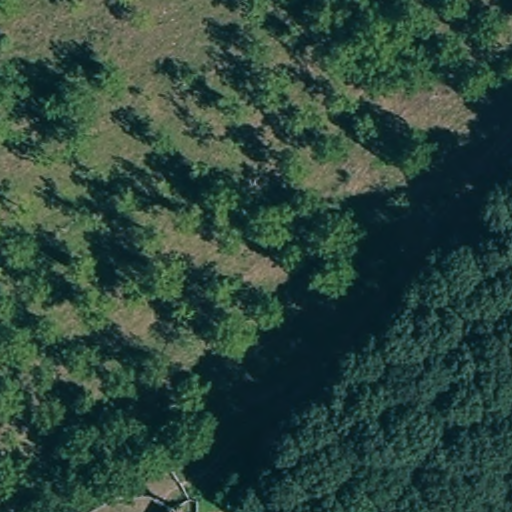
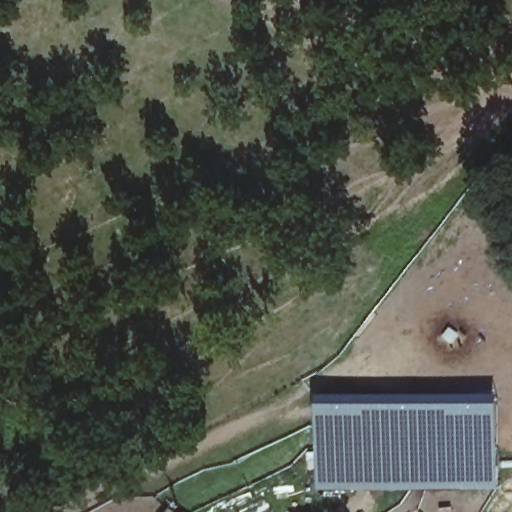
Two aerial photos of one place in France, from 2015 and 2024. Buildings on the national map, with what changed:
new [(316,404),(412,407),(498,405),(501,492),(315,491),(313,453),(316,404)]

